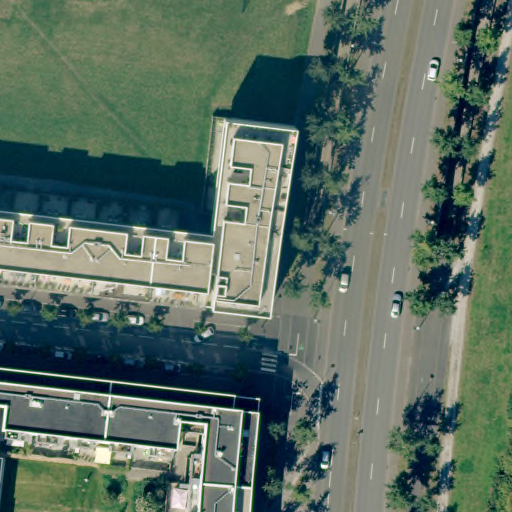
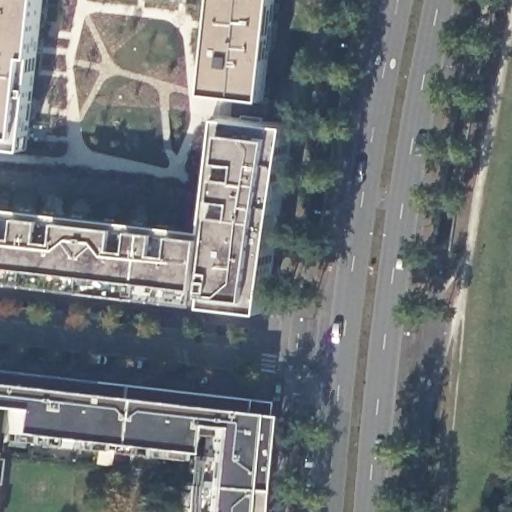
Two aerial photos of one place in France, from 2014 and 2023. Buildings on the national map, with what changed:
demolished [(0,8),(0,0),(1,0),(0,8)]
new [(0,145),(0,0),(47,0),(31,148),(18,147),(0,145)]
new [(219,0),(277,0),(267,99),(209,92),(219,0)]
unchanged [(204,237),(207,213),(215,214),(227,117),(235,119),(257,121),(289,125),(289,127),(287,140),(282,167),(278,194),(274,221),(270,250),(266,276),(265,283),(264,292),(263,306),(262,312),(218,307),(197,304),(198,292),(0,269),(0,213),(18,215),(18,209),(26,210),(25,216),(42,218),(42,212),(50,212),(50,219),(70,222),(71,215),(79,216),(78,222),(103,225),(103,219),(111,220),(110,226),(131,229),(132,222),(140,223),(139,230),(156,231),(157,225),(164,226),(164,232),(204,237)]
unchanged [(146,383),(181,388),(201,390),(252,396),(244,486),(242,512),(182,512),(183,481),(184,468),(186,450),(194,451),(197,422),(172,419),(169,448),(0,428),(0,367),(31,371),(146,383)]
unchanged [(4,463),(1,488),(0,488),(0,463),(4,463)]

